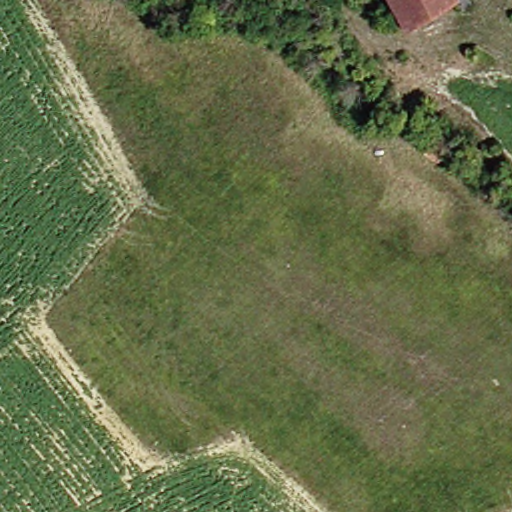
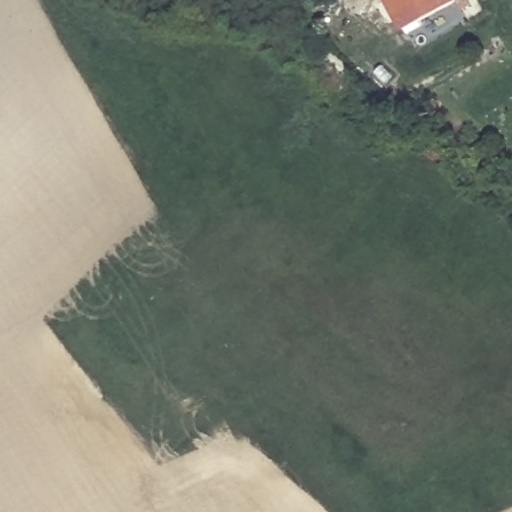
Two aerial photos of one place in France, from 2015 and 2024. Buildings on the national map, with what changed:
unchanged [(480,2),(483,10),(468,16),(466,7),(420,26),(404,0),(472,0),(474,4),(480,2)]

